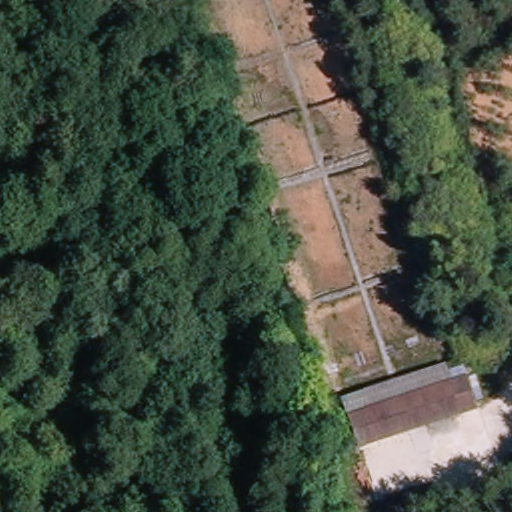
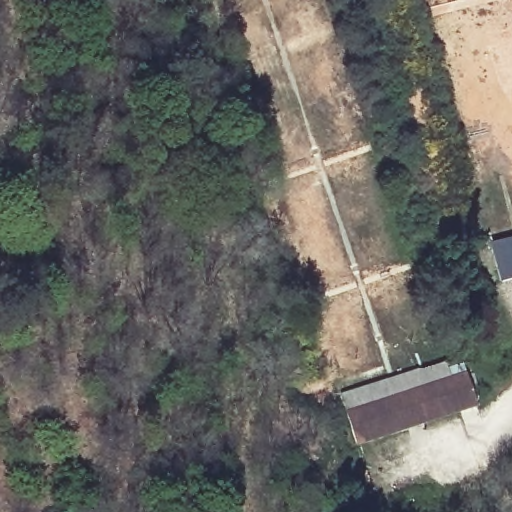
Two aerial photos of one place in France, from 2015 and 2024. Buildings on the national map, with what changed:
new [(512,280),(500,283),(490,244),(512,238),(512,280)]
unchanged [(363,450),(353,420),(477,377),(487,407),(470,413),(363,450)]

